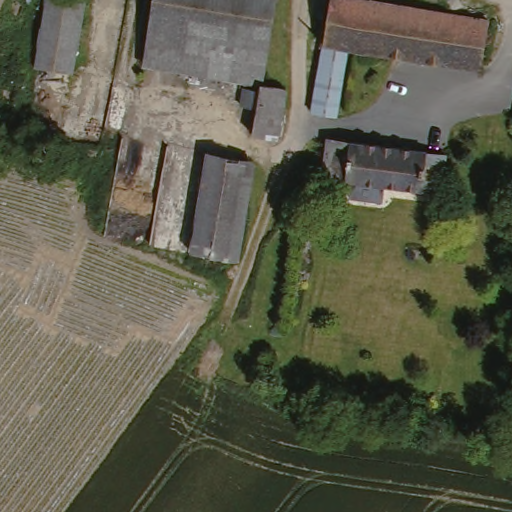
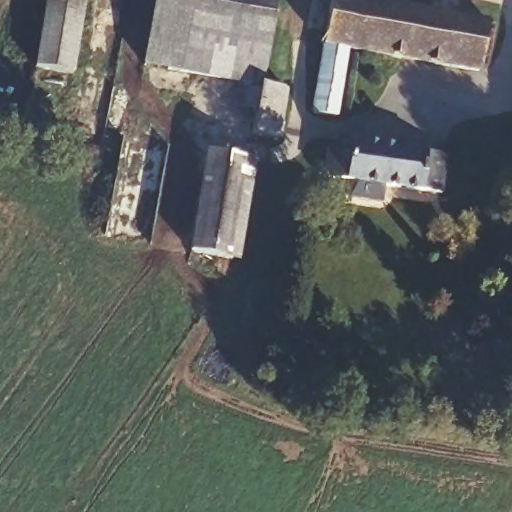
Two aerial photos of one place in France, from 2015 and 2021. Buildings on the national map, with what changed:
unchanged [(95,0),(82,82),(42,75),(55,0),(95,0)]
unchanged [(155,0),(275,0),(258,83),(143,59),(155,0)]
unchanged [(490,29),(483,76),(354,59),(330,56),(339,8),(490,29)]
unchanged [(330,56),(354,59),(342,126),(318,124),(330,56)]
unchanged [(286,88),(276,137),(267,135),(249,132),(254,105),(238,101),(242,85),(258,87),(258,83),(270,85),(286,88)]
unchanged [(352,202),(353,188),(324,185),(326,145),(385,151),(446,158),(443,195),(387,190),(386,205),(352,202)]
unchanged [(202,174),(206,154),(246,162),(242,178),(225,259),(185,252),(202,174)]

